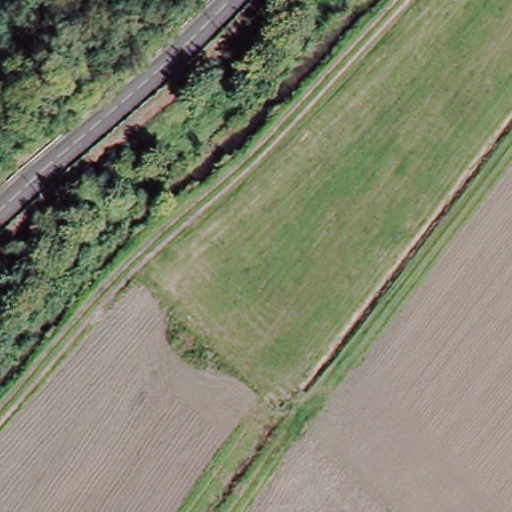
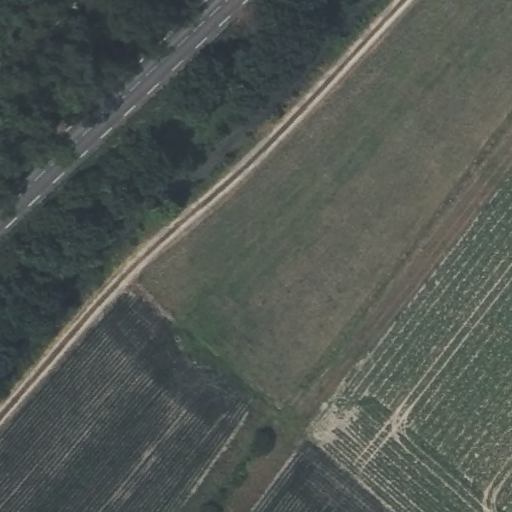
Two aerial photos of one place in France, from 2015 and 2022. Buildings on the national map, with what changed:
[]

